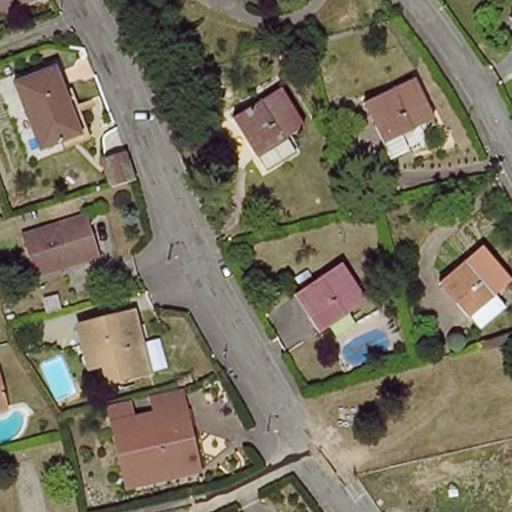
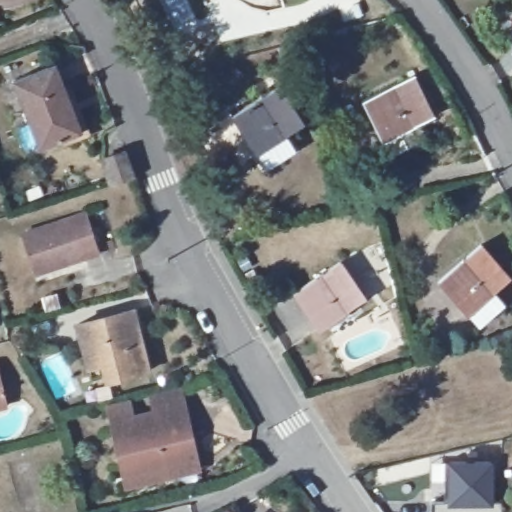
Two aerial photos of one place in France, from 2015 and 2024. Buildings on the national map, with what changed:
unchanged [(73,59),(96,127),(27,153),(2,82),(73,59)]
unchanged [(413,79),(432,117),(397,133),(379,141),(360,104),(413,79)]
unchanged [(282,85),(304,124),(289,133),(299,151),(270,168),(258,150),(255,152),(233,114),(282,85)]
unchanged [(137,175),(111,184),(105,161),(128,153),(137,175)]
unchanged [(91,208),(103,252),(30,274),(18,230),(91,208)]
unchanged [(474,324),(466,312),(441,278),(486,244),(511,280),(493,293),(501,305),(474,324)]
unchanged [(343,258),(367,295),(319,327),(294,290),(343,258)]
unchanged [(86,352),(79,325),(138,313),(153,378),(116,385),(95,389),(86,352)]
unchanged [(4,364),(15,411),(0,414),(0,365),(4,364)]
unchanged [(184,406),(199,470),(173,476),(170,465),(123,477),(109,423),(184,406)]
new [(453,504),(453,464),(494,465),(493,504),(453,504)]
new [(453,503),(453,504),(493,504),(493,503),(503,503),(503,512),(433,512),(434,503),(453,503)]

